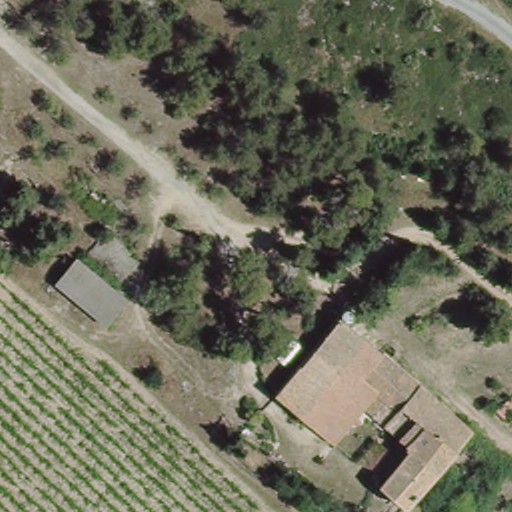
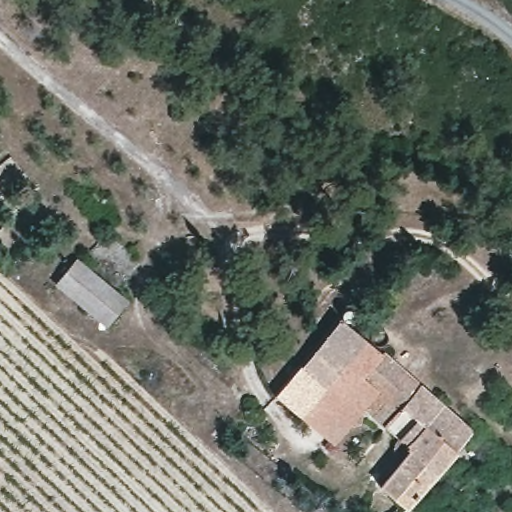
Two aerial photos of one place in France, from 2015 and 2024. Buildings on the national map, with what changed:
unchanged [(107,318),(58,280),(72,260),(122,299),(107,318)]
unchanged [(370,341),(305,418),(272,390),(340,313),(370,341)]
unchanged [(383,351),(361,376),(379,392),(364,411),(360,407),(332,439),(305,418),(370,341),(383,351)]
unchanged [(379,392),(361,376),(383,351),(471,428),(427,485),(407,507),(385,488),(407,464),(403,453),(405,445),(364,411),(379,392)]
unchanged [(512,388),(512,411),(507,417),(494,406),(512,388)]

